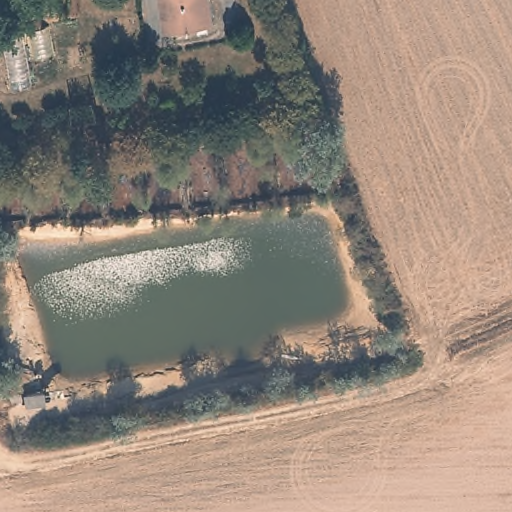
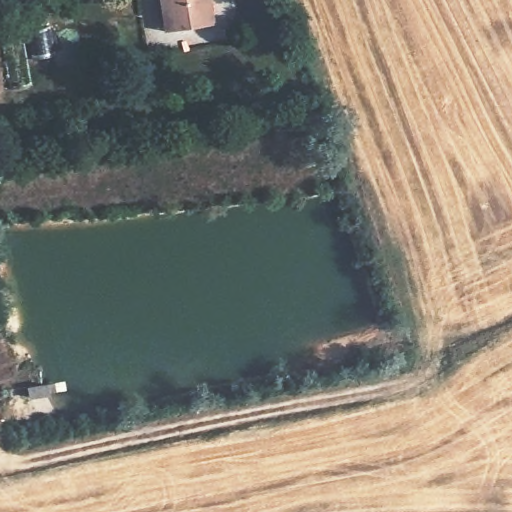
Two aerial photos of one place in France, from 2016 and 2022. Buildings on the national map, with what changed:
unchanged [(207,0),(211,25),(172,31),(161,33),(156,0),(207,0)]
unchanged [(46,385),(48,396),(26,400),(23,388),(46,385)]

